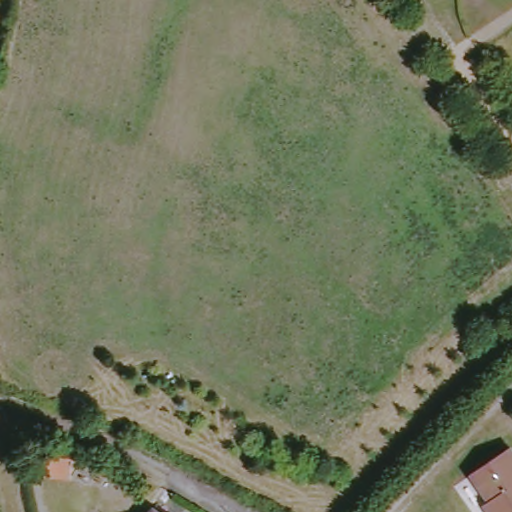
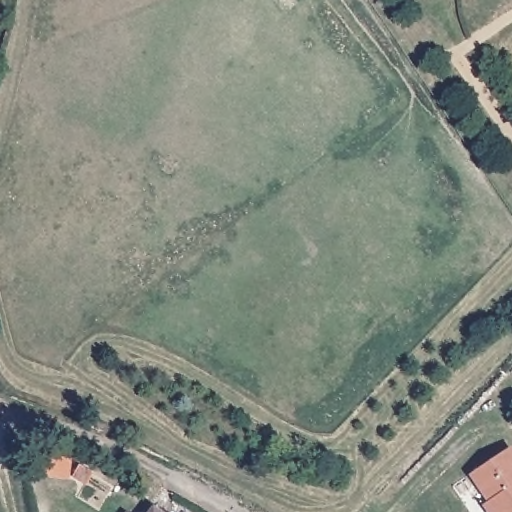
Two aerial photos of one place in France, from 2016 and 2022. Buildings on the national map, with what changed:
unchanged [(476,474),(512,451),(512,512),(488,512),(484,506),(493,500),(476,474)]
unchanged [(162,512),(151,512),(156,506),(162,512)]

